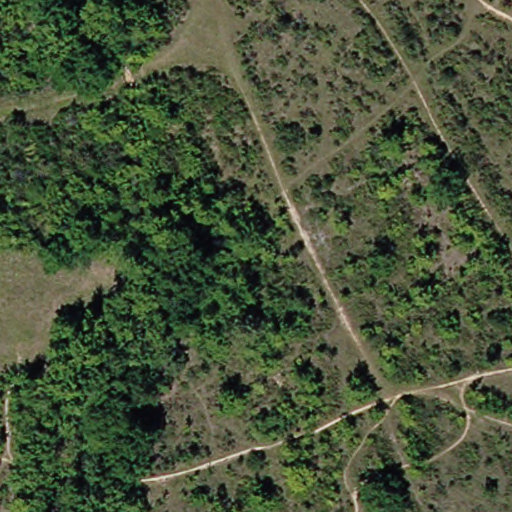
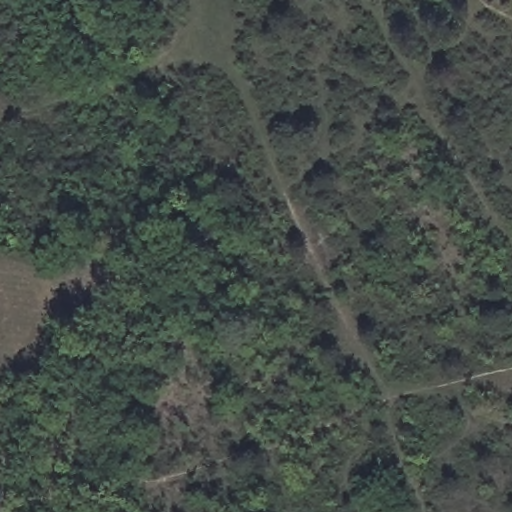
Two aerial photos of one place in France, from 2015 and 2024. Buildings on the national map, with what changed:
unchanged [(503,4),(500,0),(508,0),(503,4)]

